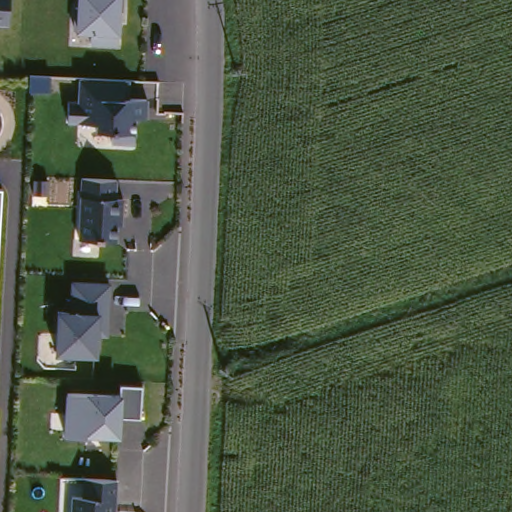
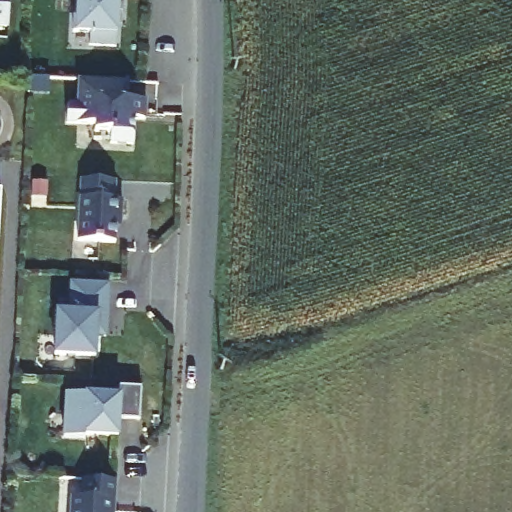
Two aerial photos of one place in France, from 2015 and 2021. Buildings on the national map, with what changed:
unchanged [(8,25),(0,25),(0,0),(9,0),(8,25)]
unchanged [(89,31),(74,30),(76,0),(117,0),(114,49),(87,47),(89,31)]
unchanged [(66,105),(76,105),(78,79),(126,81),(126,97),(147,100),(147,121),(135,119),(135,144),(109,144),(112,130),(93,130),(93,122),(65,124),(66,105)]
unchanged [(82,180),(112,183),(112,197),(123,200),(121,225),(116,226),(114,243),(79,240),(82,180)]
unchanged [(3,191),(0,231),(0,191),(3,191)]
unchanged [(54,310),(68,311),(70,282),(110,287),(107,339),(98,337),(96,360),(51,356),(54,310)]
unchanged [(65,393),(118,395),(119,388),(140,388),(139,420),(122,419),(119,440),(62,436),(65,393)]
unchanged [(72,512),(74,494),(79,495),(80,476),(117,478),(115,512),(72,512)]

